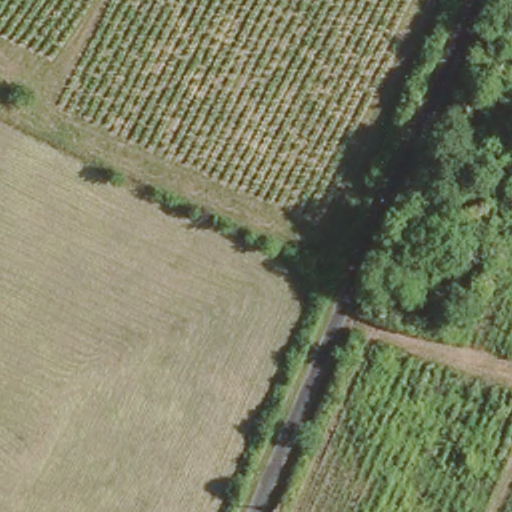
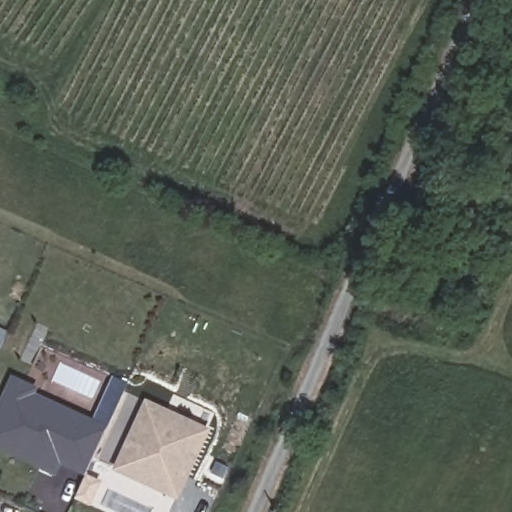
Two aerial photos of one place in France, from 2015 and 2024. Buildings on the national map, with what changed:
new [(40,387),(38,394),(110,426),(86,476),(62,465),(56,476),(0,450),(0,406),(12,375),(40,387)]
new [(212,430),(181,500),(113,470),(146,399),(212,430)]

